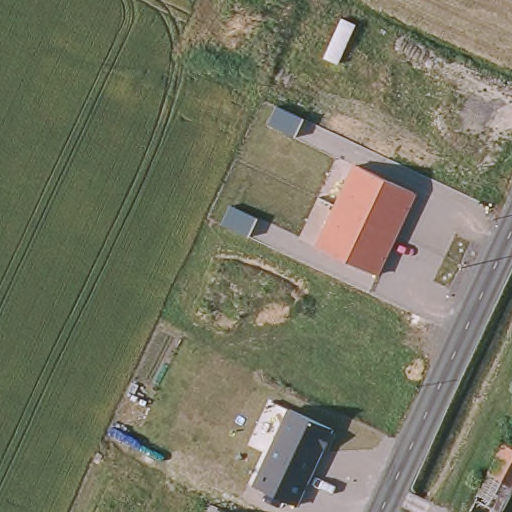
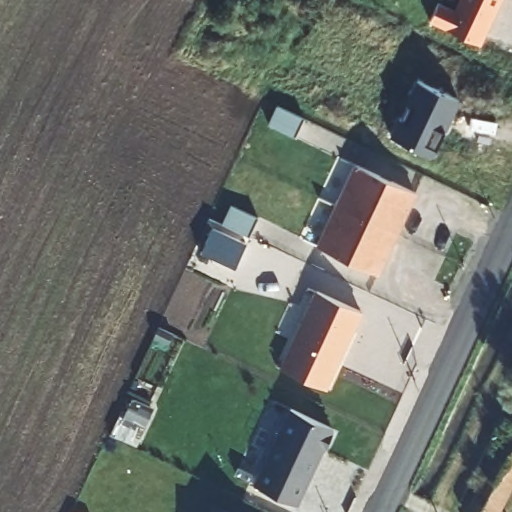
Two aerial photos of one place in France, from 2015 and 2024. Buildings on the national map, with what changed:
new [(439,1),(454,9),(458,0),(501,0),(480,44),(430,20),(439,1)]
new [(417,80),(460,100),(433,156),(390,135),(417,80)]
new [(279,105),(307,117),(298,136),(270,124),(279,105)]
unchanged [(314,245),(352,162),(417,192),(378,273),(314,245)]
new [(233,205),(261,217),(252,236),(225,223),(233,205)]
new [(280,366),(315,290),(364,312),(327,390),(280,366)]
unchanged [(298,505),(252,484),(287,408),(334,430),(298,505)]
unchanged [(512,491),(501,512),(469,512),(504,446),(512,450),(512,491)]

